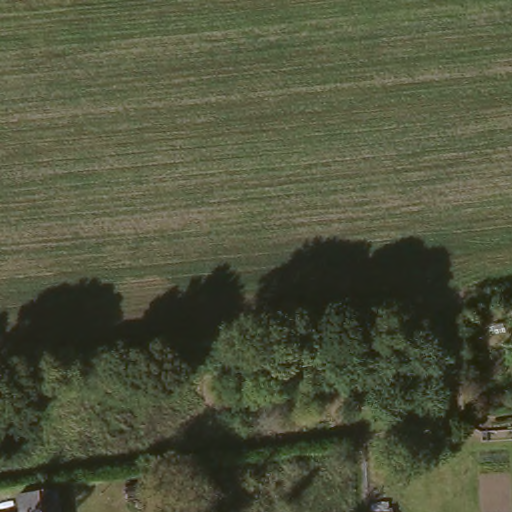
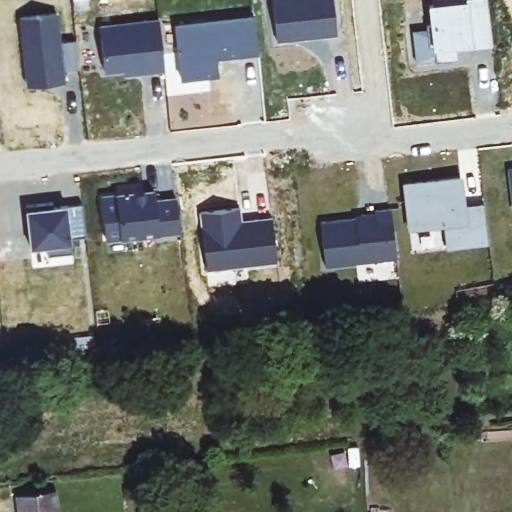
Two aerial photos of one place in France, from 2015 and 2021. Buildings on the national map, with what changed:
new [(336,35),(277,42),(273,0),(333,0),(336,35)]
new [(459,61),(436,63),(436,61),(417,63),(413,32),(428,30),(428,26),(432,25),(430,6),(433,5),(433,0),(486,0),(492,46),(471,49),(458,51),(459,61)]
new [(55,17),(59,47),(75,45),(77,68),(62,70),(63,82),(27,86),(20,21),(55,17)]
new [(254,19),(258,55),(217,60),(219,77),(182,81),(176,28),(254,19)]
new [(161,23),(166,73),(133,77),(132,71),(106,74),(101,30),(161,23)]
new [(459,179),(462,208),(482,205),(487,243),(446,249),(443,226),(409,230),(403,185),(459,179)]
new [(154,193),(155,202),(176,200),(180,233),(107,242),(102,199),(154,193)]
new [(54,206),(54,212),(83,208),(87,240),(72,242),(73,257),(49,260),(47,251),(32,253),(27,209),(54,206)]
new [(361,218),(361,215),(375,214),(375,210),(390,209),(397,258),(327,267),(321,223),(361,218)]
new [(238,211),(241,235),(255,234),(254,222),(271,220),(276,265),(206,273),(199,216),(238,211)]
unchanged [(57,486),(61,512),(19,512),(16,491),(57,486)]

